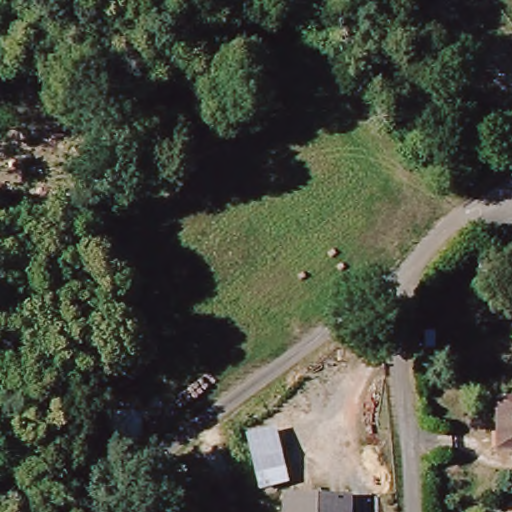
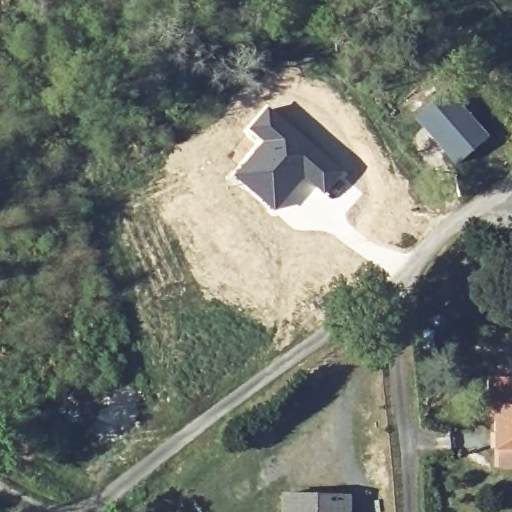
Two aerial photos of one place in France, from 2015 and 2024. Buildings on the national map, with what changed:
new [(415,118),(448,91),(487,139),(455,166),(415,118)]
new [(259,143),(246,131),(268,106),(311,141),(345,172),(325,197),(315,189),(300,206),(299,205),(285,208),(272,213),(231,176),(259,143)]
unchanged [(512,452),(496,451),(490,443),(494,399),(512,400),(512,452)]
demolished [(325,449),(331,477),(302,482),(296,455),(325,449)]
unchanged [(289,494),(289,512),(287,512),(289,494)]
unchanged [(289,494),(353,499),(353,512),(289,512),(289,494)]

